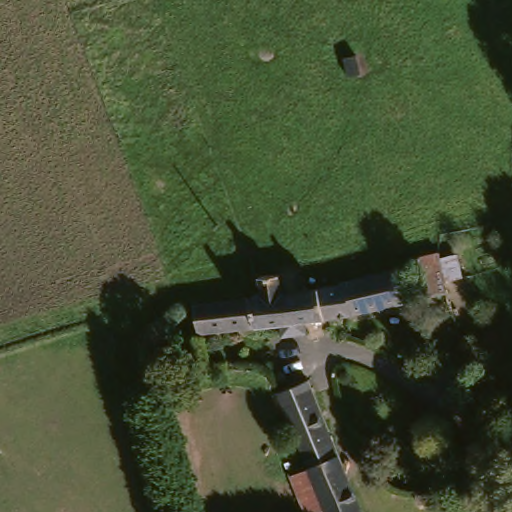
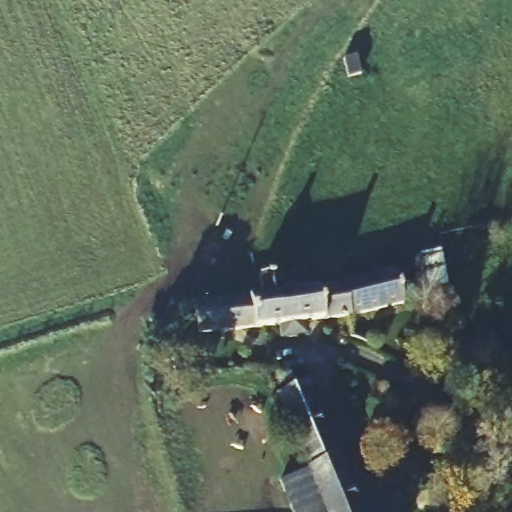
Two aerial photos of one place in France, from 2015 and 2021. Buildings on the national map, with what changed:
unchanged [(439,254),(448,296),(424,300),(416,258),(439,254)]
unchanged [(186,311),(254,300),(252,283),(273,279),(276,298),(342,287),(386,276),(394,311),(339,322),(287,328),(259,332),(192,340),(186,311)]
unchanged [(269,403),(303,392),(352,512),(313,512),(299,480),(269,403)]
unchanged [(313,512),(294,512),(284,486),(299,480),(313,512)]

